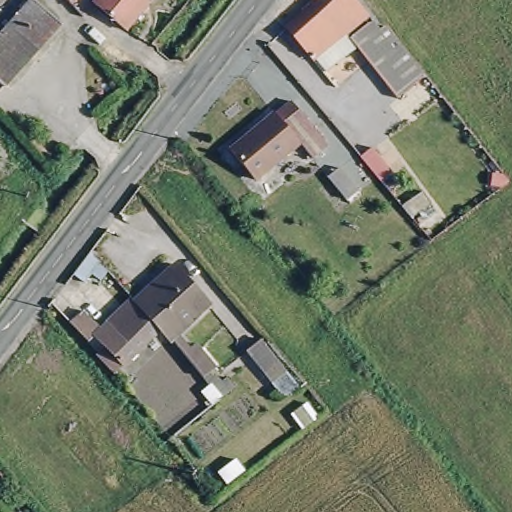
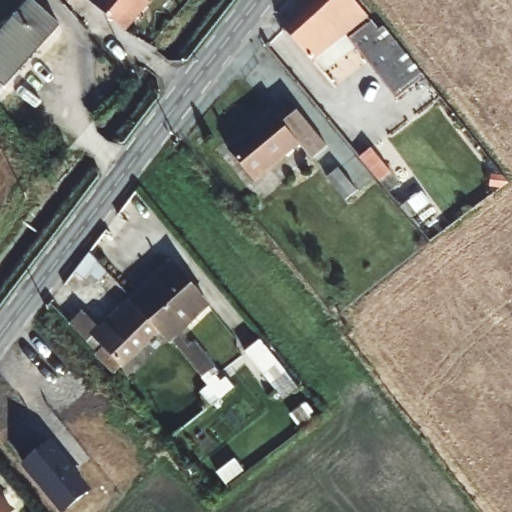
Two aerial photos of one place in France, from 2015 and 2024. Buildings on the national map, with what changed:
unchanged [(0,26),(24,0),(32,0),(56,24),(0,88),(0,26)]
unchanged [(146,10),(130,29),(97,1),(98,0),(147,0),(141,6),(146,10)]
unchanged [(314,60),(287,30),(320,1),(318,0),(356,0),(367,14),(314,60)]
unchanged [(390,97),(345,44),(365,26),(370,31),(377,26),(410,68),(416,75),(390,97)]
unchanged [(310,159),(294,171),(280,156),(235,192),(210,162),(271,113),(310,159)]
unchanged [(365,151),(385,176),(373,186),(353,161),(365,151)]
unchanged [(355,193),(343,202),(325,180),(336,170),(355,193)]
unchanged [(176,332),(190,348),(195,343),(215,364),(203,375),(158,324),(133,296),(168,262),(195,291),(207,304),(176,332)]
unchanged [(66,320),(80,308),(99,328),(105,323),(102,319),(130,293),(133,296),(158,324),(155,328),(111,369),(93,350),(83,339),(66,320)]
unchanged [(270,381),(241,349),(257,336),(286,367),(270,381)]
unchanged [(225,378),(231,372),(240,381),(222,396),(209,380),(218,372),(225,378)]
new [(75,466),(72,469),(91,491),(67,512),(63,512),(21,466),(50,441),(75,466)]
new [(14,512),(0,512),(0,496),(16,509),(14,512)]

